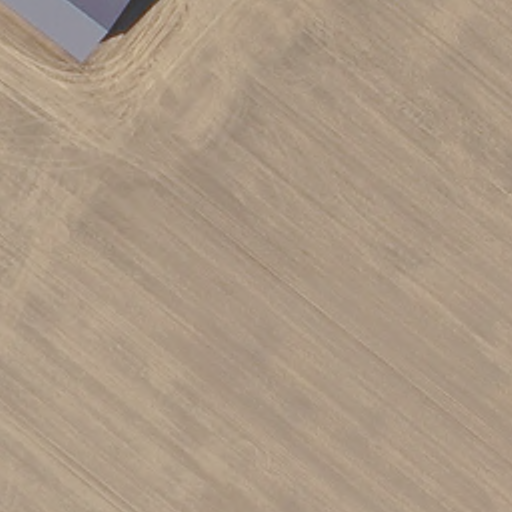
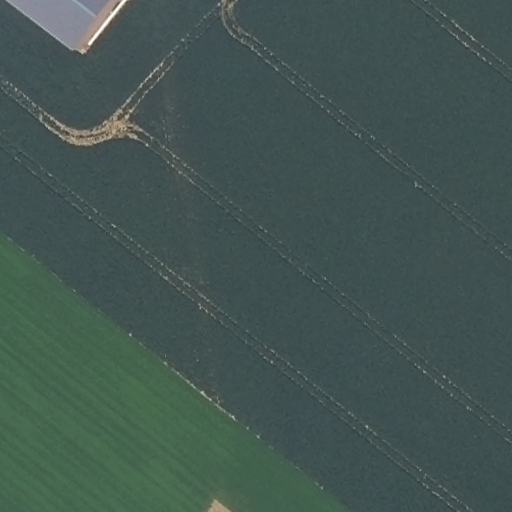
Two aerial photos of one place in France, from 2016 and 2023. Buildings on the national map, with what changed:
unchanged [(85,51),(18,0),(123,0),(85,51)]

